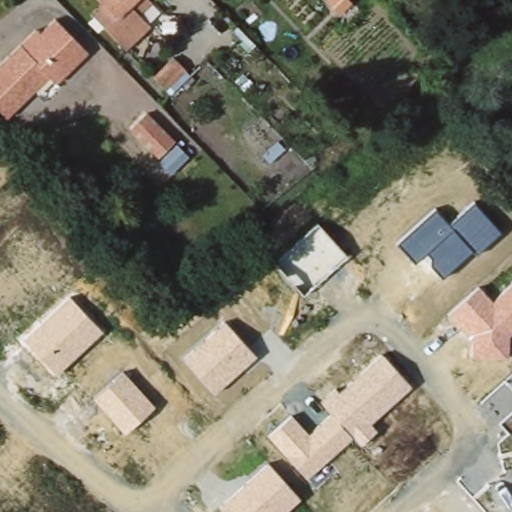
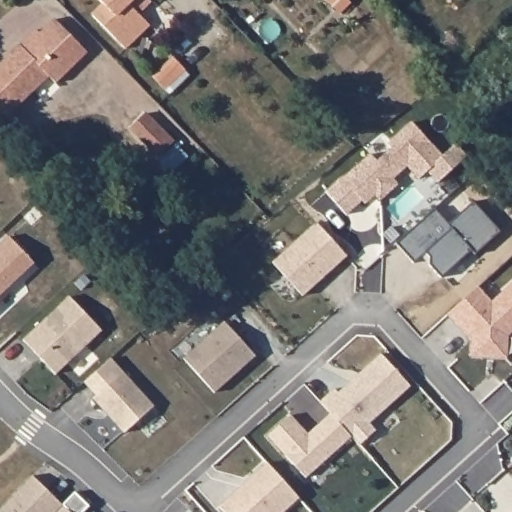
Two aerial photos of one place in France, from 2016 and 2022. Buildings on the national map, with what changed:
unchanged [(107,11),(96,0),(148,0),(149,1),(137,13),(147,25),(122,48),(96,20),(107,11)]
unchanged [(0,111),(0,65),(21,45),(35,31),(40,36),(57,20),(88,53),(57,83),(50,77),(24,102),(7,118),(0,111)]
unchanged [(176,57),(187,69),(167,89),(155,76),(176,57)]
unchanged [(147,112),(175,140),(159,155),(131,127),(147,112)]
new [(362,200),(347,214),(327,191),(343,177),(344,178),(371,154),(377,161),(392,148),(388,144),(412,122),(442,156),(456,144),(467,156),(438,182),(427,171),(419,179),(407,166),(393,178),(398,184),(381,200),(376,195),(366,203),(362,200)]
unchanged [(436,209),(450,223),(473,202),(501,231),(475,254),(471,250),(442,276),(430,264),(431,257),(427,252),(414,262),(397,244),(436,209)]
unchanged [(347,255),(303,296),(275,261),(317,222),(347,255)]
new [(9,235),(34,262),(0,294),(0,244),(9,235)]
unchanged [(512,282),(512,333),(509,336),(508,356),(472,354),(473,337),(450,312),(479,286),(492,299),(512,282)]
unchanged [(102,330),(57,373),(24,339),(70,295),(102,330)]
unchanged [(257,355),(216,392),(185,358),(224,321),(257,355)]
unchanged [(292,414),(310,433),(332,414),(321,401),(335,387),(340,392),(382,353),(410,385),(371,422),(377,429),(360,444),(352,436),(306,478),(269,436),(292,414)]
unchanged [(93,398),(122,370),(155,405),(125,434),(93,398)]
unchanged [(283,512),(226,512),(221,506),(268,464),(298,498),(283,512)]
new [(47,489),(62,504),(75,491),(89,505),(82,512),(0,512),(0,508),(32,475),(47,489)]

